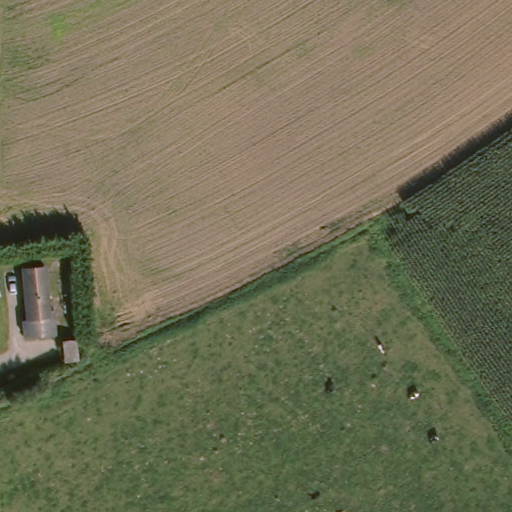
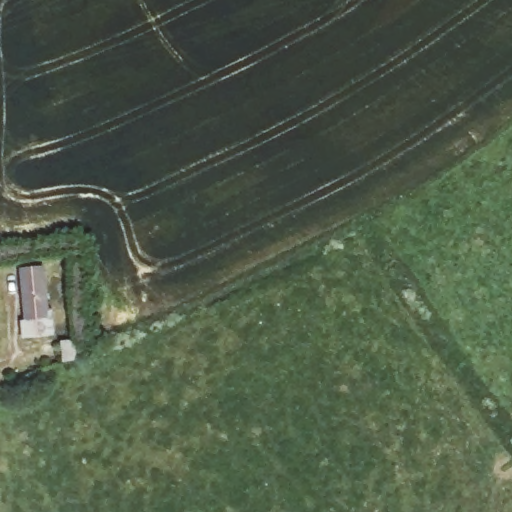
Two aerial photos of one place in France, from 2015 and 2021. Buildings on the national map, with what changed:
unchanged [(36,264),(41,315),(46,315),(48,335),(15,338),(13,319),(18,318),(14,266),(36,264)]
unchanged [(51,341),(66,341),(66,357),(51,357),(51,341)]

